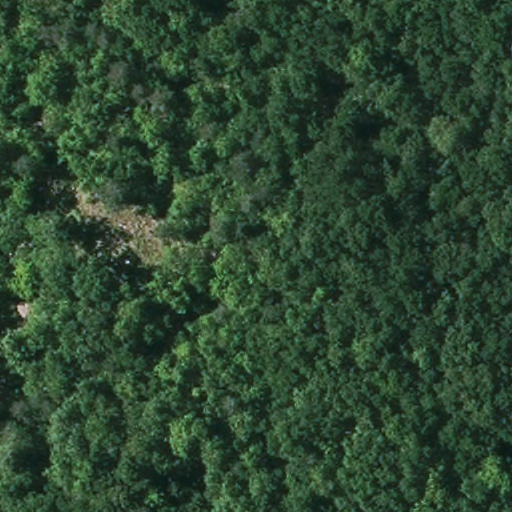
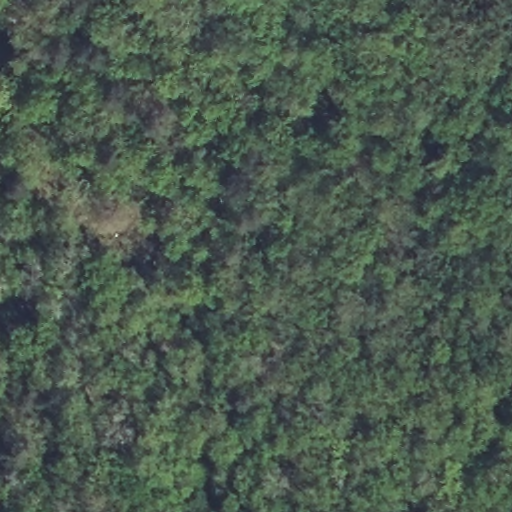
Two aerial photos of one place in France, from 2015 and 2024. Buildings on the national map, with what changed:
[]

